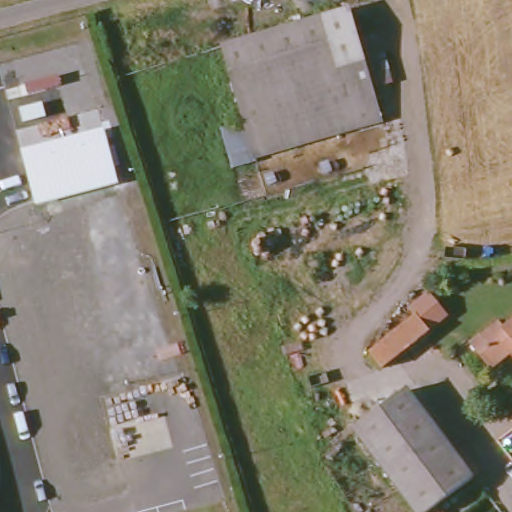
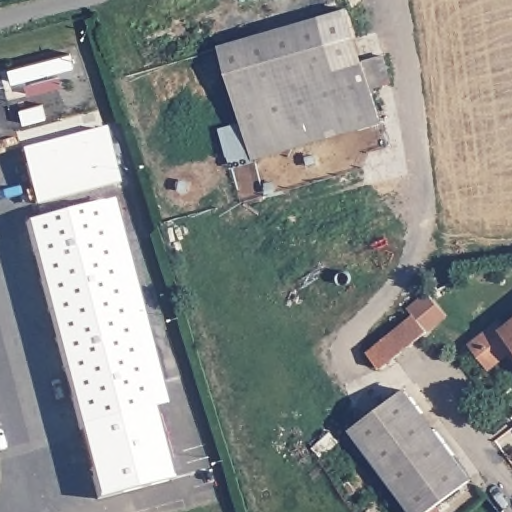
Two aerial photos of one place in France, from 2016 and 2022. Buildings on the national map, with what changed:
unchanged [(250,146),(223,47),(317,20),(346,11),(360,64),(380,59),(387,85),(368,91),(374,111),(250,146)]
unchanged [(378,125),(255,160),(250,146),(374,111),(378,125)]
unchanged [(22,151),(105,129),(119,184),(36,206),(22,151)]
new [(152,407),(80,427),(27,224),(100,204),(113,200),(166,403),(152,407)]
unchanged [(412,323),(408,317),(430,302),(446,324),(381,374),(369,360),(412,323)]
unchanged [(480,342),(504,322),(511,328),(512,327),(512,353),(498,365),(480,342)]
unchanged [(354,429),(405,393),(469,484),(429,512),(413,512),(354,429)]

